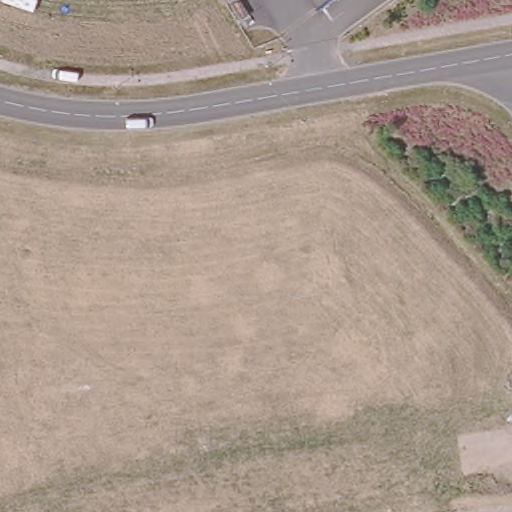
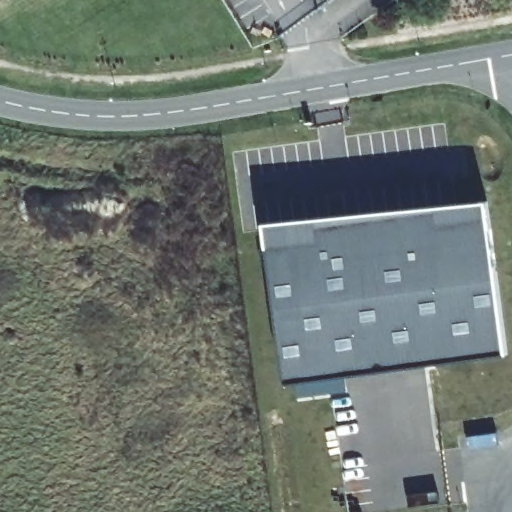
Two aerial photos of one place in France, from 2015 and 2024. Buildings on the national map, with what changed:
new [(266,248),(317,241),(315,226),(437,210),(440,225),(482,219),(479,202),(488,201),(508,355),(285,385),(266,248)]
new [(264,231),(479,202),(482,219),(440,225),(437,210),(315,226),(317,241),(266,248),(264,231)]

